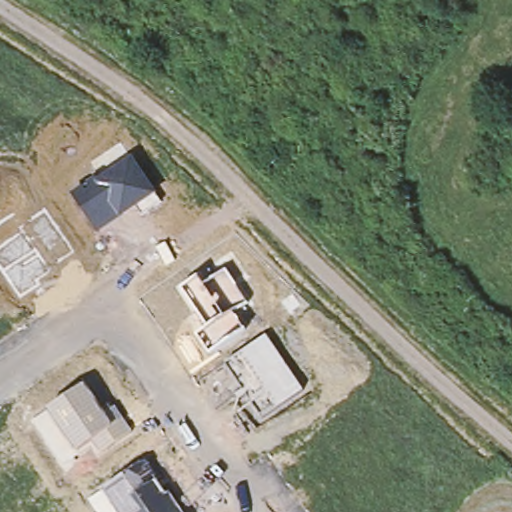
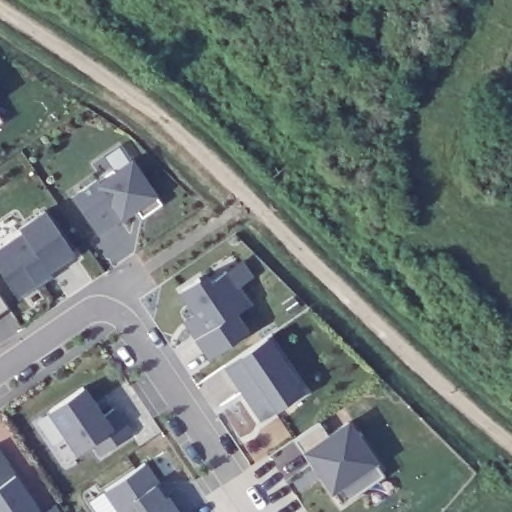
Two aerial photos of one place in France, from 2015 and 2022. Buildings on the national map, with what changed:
new [(3,120),(0,123),(0,115),(3,120)]
unchanged [(71,193),(134,156),(157,194),(161,202),(142,214),(138,207),(96,233),(71,193)]
new [(0,269),(0,247),(23,232),(20,227),(48,210),(76,254),(49,271),(53,275),(18,297),(0,269)]
unchanged [(198,334),(208,327),(181,287),(199,276),(205,284),(226,270),(247,303),(233,311),(246,329),(210,354),(198,334)]
new [(0,314),(0,294),(6,304),(9,307),(0,314)]
unchanged [(228,362),(242,351),(266,334),(303,389),(277,406),(262,415),(228,362)]
unchanged [(34,420),(48,408),(86,383),(105,412),(115,405),(133,432),(101,453),(98,456),(91,446),(64,463),(34,420)]
new [(336,491),(331,494),(304,451),(296,438),(319,422),(328,434),(350,419),(376,460),(384,474),(343,502),(336,491)]
new [(18,474),(42,512),(0,512),(0,448),(18,474)]
unchanged [(146,461),(158,480),(156,481),(166,494),(171,493),(182,512),(118,512),(103,489),(146,461)]

